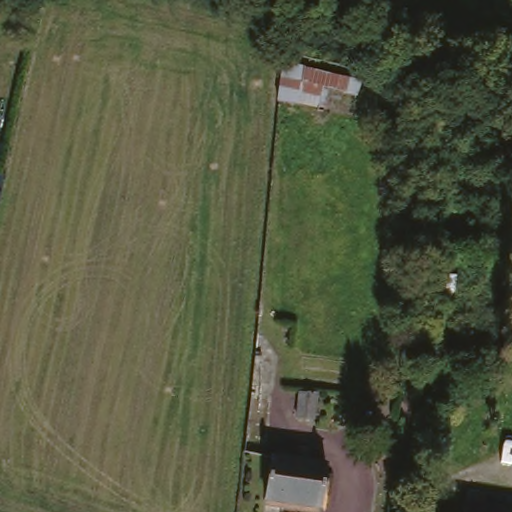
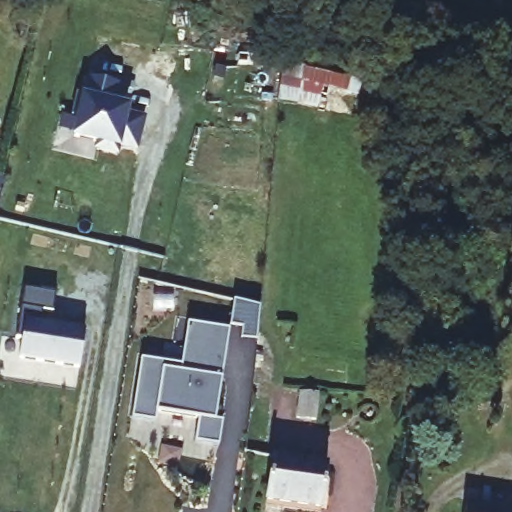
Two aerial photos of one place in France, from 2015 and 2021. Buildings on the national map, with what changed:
unchanged [(360,77),(354,99),(326,91),(321,112),(272,100),(283,57),(360,77)]
new [(79,114),(74,112),(79,94),(83,95),(88,75),(120,83),(115,103),(126,106),(125,112),(142,117),(135,147),(117,143),(115,151),(95,146),(97,140),(74,135),(79,114)]
new [(20,302),(42,306),(40,320),(84,327),(77,365),(18,355),(21,336),(15,335),(20,302)]
new [(181,363),(185,341),(189,322),(229,328),(226,348),(220,377),(181,370),(182,364),(181,363)]
new [(142,357),(181,363),(182,364),(181,370),(220,377),(212,418),(220,420),(215,445),(192,440),(196,417),(155,410),(154,420),(131,416),(142,357)]
demolished [(305,387),(302,415),(281,413),(283,386),(305,387)]
new [(321,390),(318,416),(298,415),(300,388),(321,390)]
unchanged [(323,464),(319,508),(267,504),(270,460),(323,464)]
unchanged [(512,512),(460,512),(462,500),(512,508),(512,512)]

